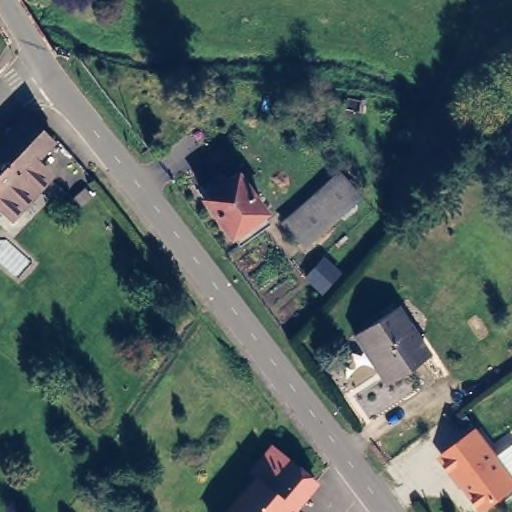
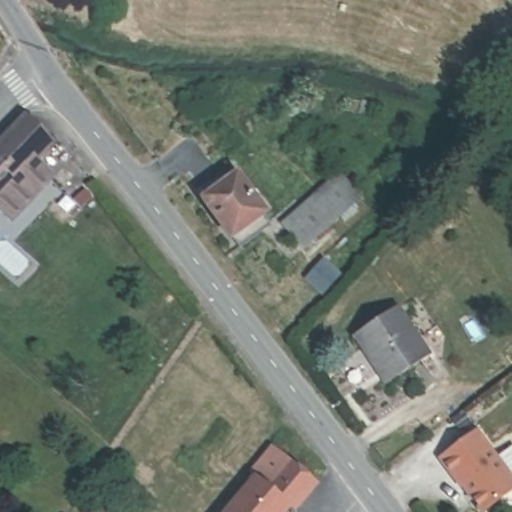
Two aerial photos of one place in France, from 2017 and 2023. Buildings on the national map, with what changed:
unchanged [(10,211),(0,203),(0,136),(24,111),(52,137),(32,157),(44,170),(10,211)]
unchanged [(221,170),(232,162),(261,201),(259,203),(266,213),(237,234),(230,224),(227,226),(197,187),(190,178),(195,174),(200,178),(205,173),(217,165),(221,170)]
unchanged [(331,184),(337,190),(330,197),(344,212),(306,244),(287,220),(331,184)]
unchanged [(399,306),(428,355),(385,381),(356,333),(399,306)]
unchanged [(476,397),(482,408),(472,415),(465,404),(476,397)]
unchanged [(479,417),(512,467),(512,475),(482,497),(456,456),(454,457),(442,442),(479,417)]
unchanged [(272,447),(317,482),(297,507),(290,503),(283,512),(230,512),(257,477),(252,473),(272,447)]

